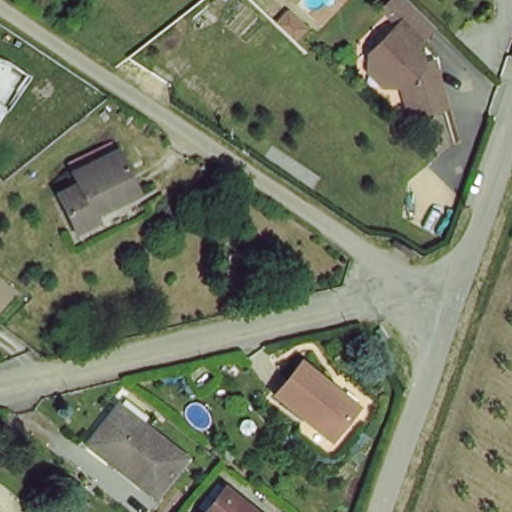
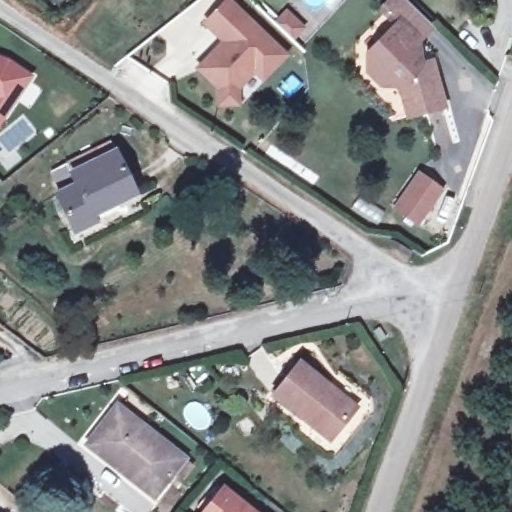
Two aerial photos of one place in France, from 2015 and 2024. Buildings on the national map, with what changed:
new [(242,107),(217,108),(216,90),(194,69),(221,43),(201,24),(226,0),(232,0),(289,55),(263,82),(256,75),(241,90),(242,107)]
unchanged [(442,99),(411,113),(399,82),(381,65),(366,68),(366,48),(391,23),(374,4),(377,0),(400,0),(428,26),(419,35),(408,46),(429,67),(442,99)]
new [(34,76),(0,127),(0,56),(8,57),(34,76)]
unchanged [(73,173),(114,151),(136,192),(93,215),(96,223),(78,232),(58,195),(78,184),(73,173)]
new [(419,171),(445,190),(419,227),(393,209),(419,171)]
unchanged [(333,439),(271,396),(299,359),(359,403),(333,439)]
unchanged [(178,463),(158,490),(93,439),(117,411),(178,463)]
unchanged [(223,482),(264,512),(200,512),(223,482)]

